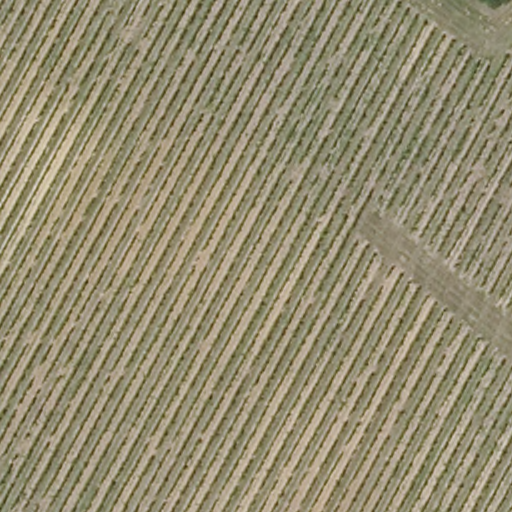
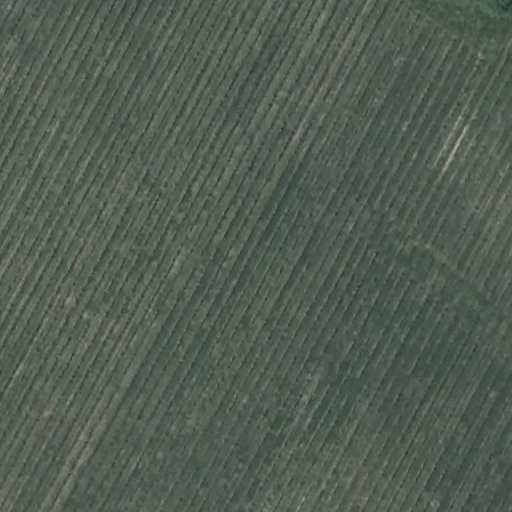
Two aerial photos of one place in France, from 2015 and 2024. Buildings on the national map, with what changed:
[]

